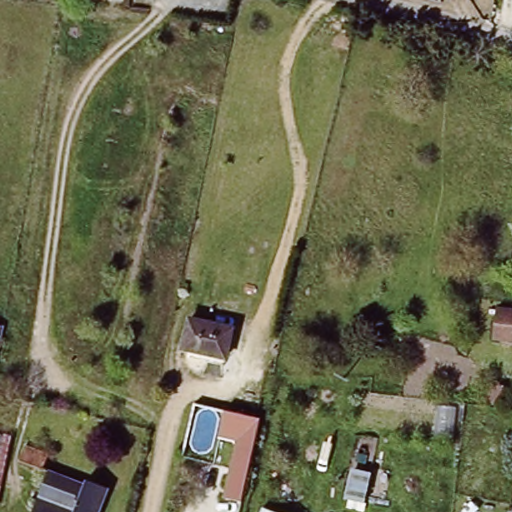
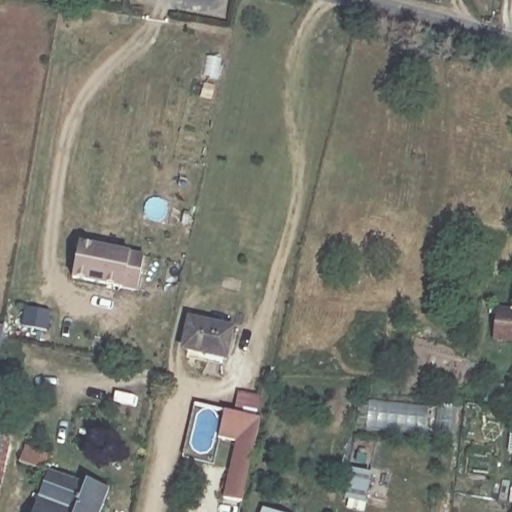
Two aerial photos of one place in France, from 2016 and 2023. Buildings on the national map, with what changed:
new [(138,292),(71,279),(77,241),(145,254),(138,292)]
new [(512,313),(512,345),(492,344),(495,311),(512,313)]
unchanged [(225,353),(183,343),(190,314),(232,324),(225,353)]
unchanged [(0,341),(0,324),(3,324),(0,341)]
unchanged [(242,503),(221,498),(235,442),(217,438),(224,410),(261,419),(242,503)]
unchanged [(0,430),(7,431),(0,465),(0,430)]
unchanged [(45,465),(43,469),(15,459),(22,442),(45,451),(40,463),(45,465)]
unchanged [(104,488),(95,512),(28,512),(43,469),(80,483),(81,479),(104,488)]
unchanged [(368,474),(362,504),(348,501),(355,472),(368,474)]

